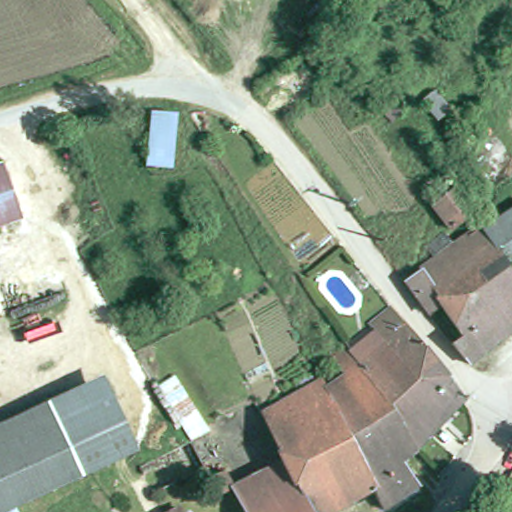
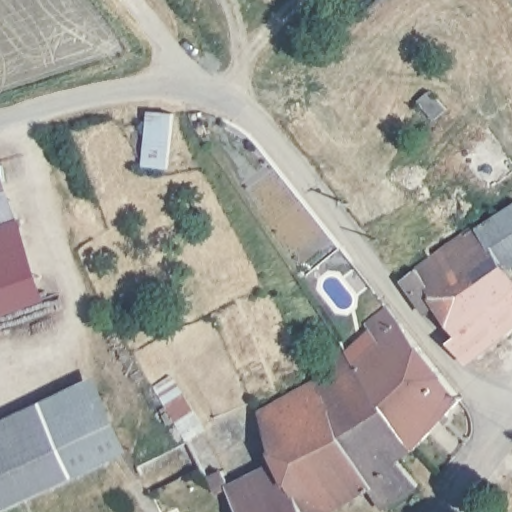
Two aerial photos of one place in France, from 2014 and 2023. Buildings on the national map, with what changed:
unchanged [(437,121),(422,100),(434,90),(450,111),(437,121)]
unchanged [(172,114),(167,169),(147,167),(152,111),(172,114)]
unchanged [(0,166),(20,221),(0,228),(0,166)]
unchanged [(450,229),(432,205),(457,187),(475,211),(450,229)]
unchanged [(436,259),(427,247),(445,234),(454,245),(483,224),(485,228),(512,210),(512,329),(503,336),(469,364),(455,345),(453,343),(462,336),(441,304),(430,313),(407,281),(436,259)]
new [(50,302),(0,319),(0,228),(20,221),(50,302)]
unchanged [(464,404),(420,452),(415,455),(345,350),(391,312),(464,404)]
unchanged [(327,393),(349,379),(331,361),(345,350),(415,455),(401,465),(420,489),(388,512),(384,512),(375,495),(327,393)]
unchanged [(192,443),(159,389),(180,376),(212,430),(192,443)]
unchanged [(107,386),(140,461),(82,484),(50,411),(107,386)]
unchanged [(260,421),(324,386),(327,393),(375,495),(343,512),(303,512),(282,468),(260,421)]
unchanged [(17,512),(0,512),(0,432),(50,411),(82,484),(17,512)]
unchanged [(232,493),(282,468),(303,512),(241,512),(232,493)]

